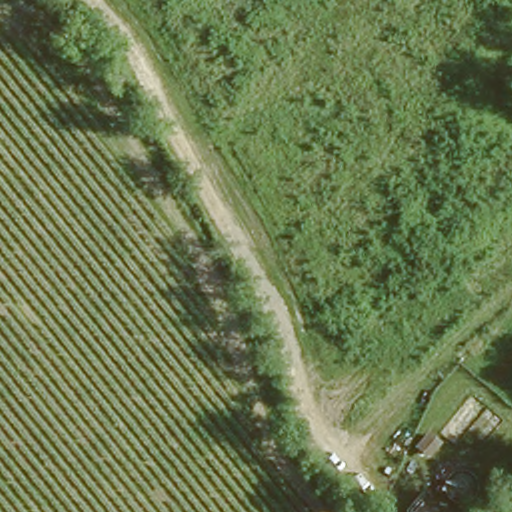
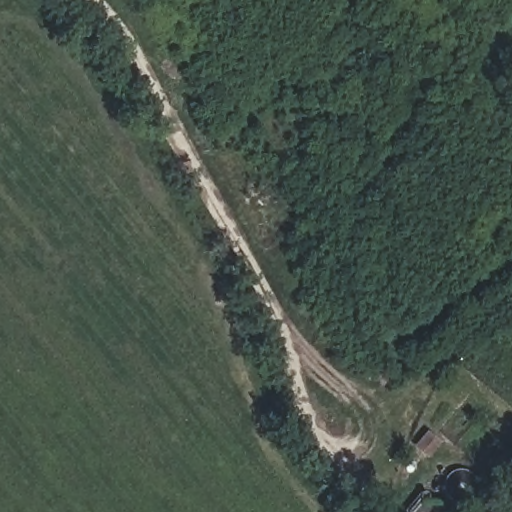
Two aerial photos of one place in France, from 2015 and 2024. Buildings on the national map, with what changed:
unchanged [(440,438),(432,451),(422,446),(429,433),(440,438)]

